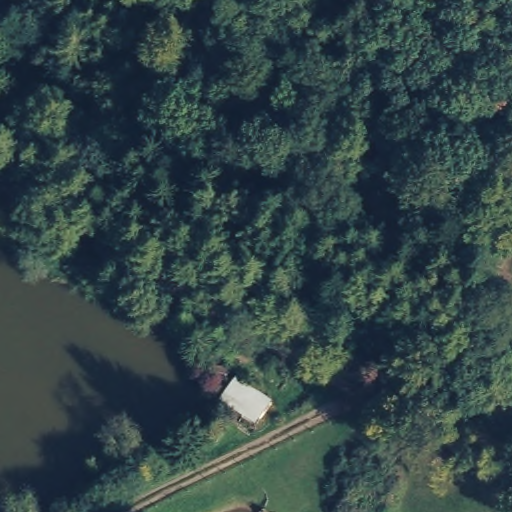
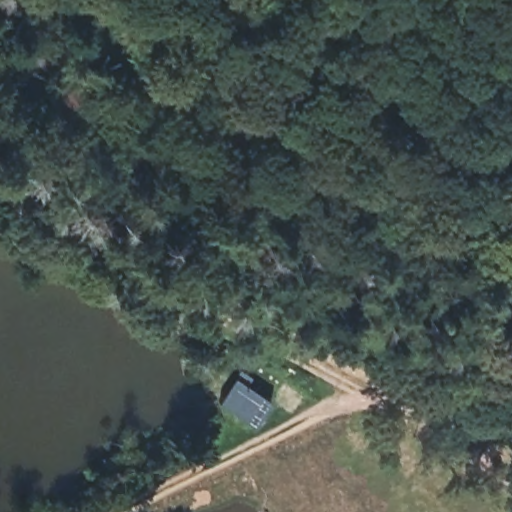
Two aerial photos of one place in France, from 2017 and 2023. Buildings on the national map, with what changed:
unchanged [(272,394),(259,414),(218,387),(232,368),(272,394)]

